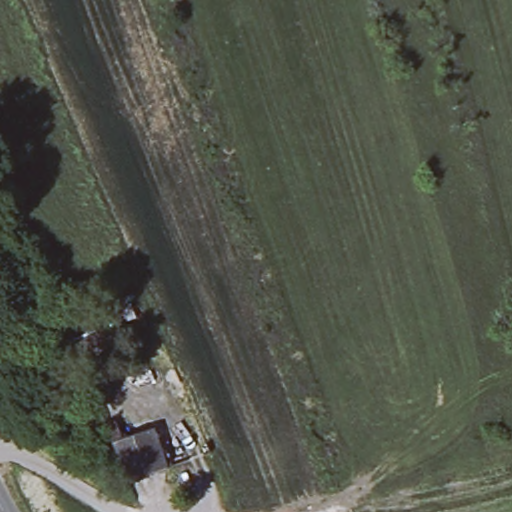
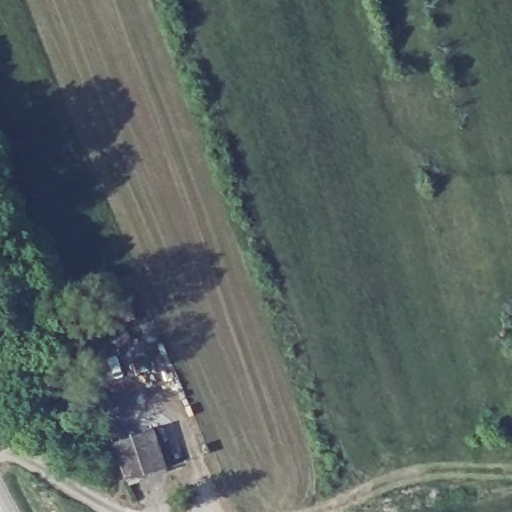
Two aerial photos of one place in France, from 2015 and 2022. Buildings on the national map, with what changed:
unchanged [(128,487),(110,440),(155,423),(170,468),(128,487)]

